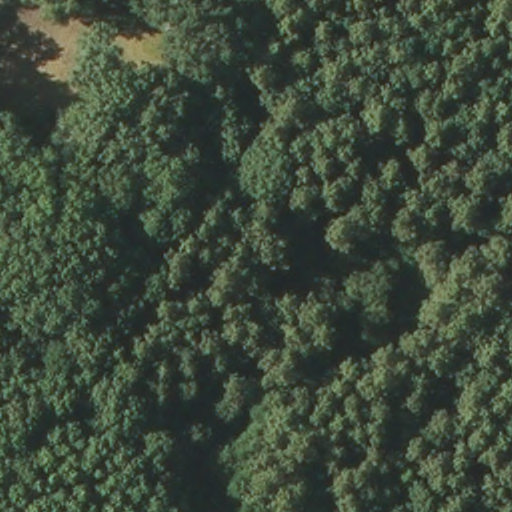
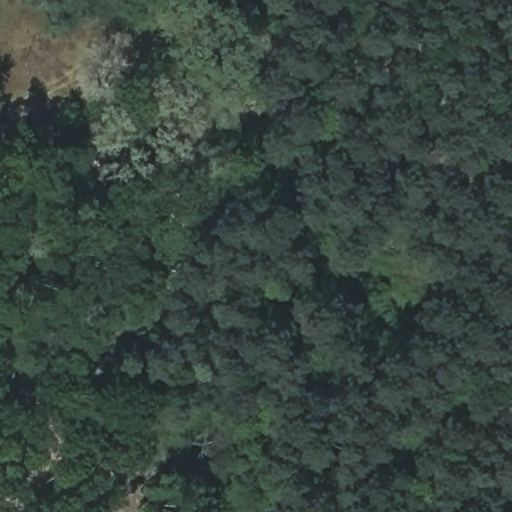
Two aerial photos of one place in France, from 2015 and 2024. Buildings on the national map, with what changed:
unchanged [(447,341),(369,322),(382,273),(460,294),(447,341)]

